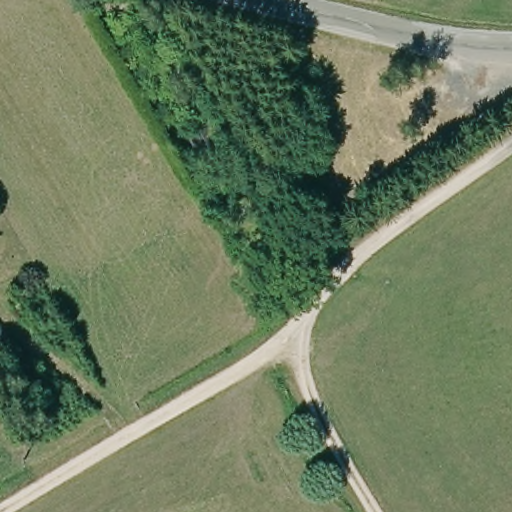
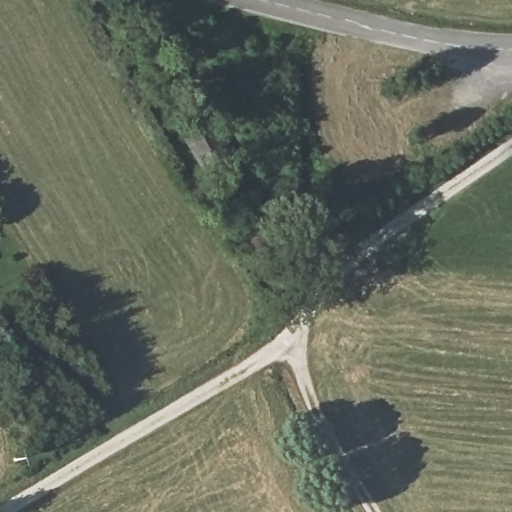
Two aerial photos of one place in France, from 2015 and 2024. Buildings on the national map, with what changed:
unchanged [(181,136),(208,125),(224,154),(199,166),(181,136)]

